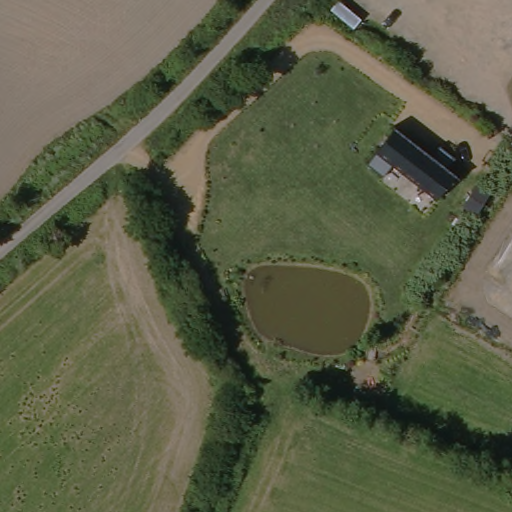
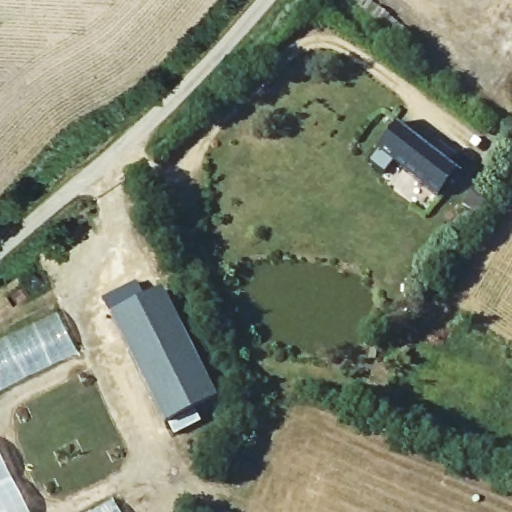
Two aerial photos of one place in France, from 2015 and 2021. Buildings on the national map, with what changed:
unchanged [(436,196),(379,150),(398,126),(433,155),(441,145),(456,157),(450,166),(460,175),(436,196)]
new [(112,316),(162,290),(218,401),(165,426),(112,316)]
new [(61,315),(77,350),(0,388),(0,343),(61,315)]
new [(27,512),(0,512),(0,458),(27,512)]
new [(116,506),(119,512),(104,512),(116,506)]

